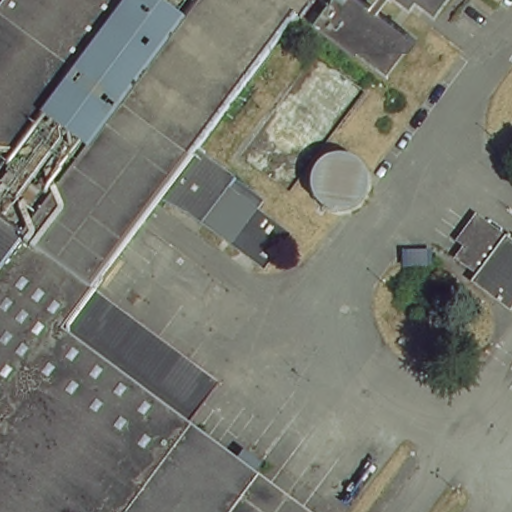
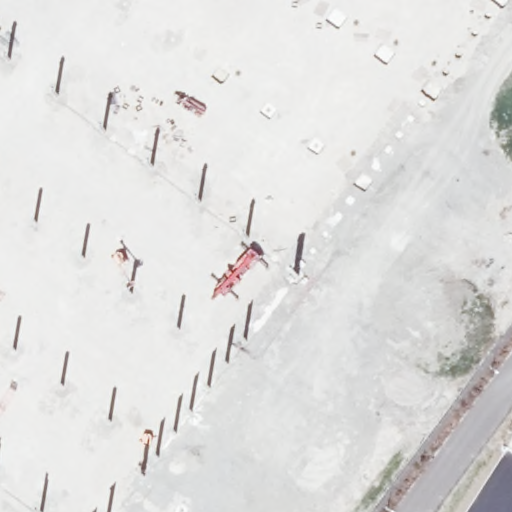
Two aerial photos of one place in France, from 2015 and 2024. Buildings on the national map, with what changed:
demolished [(202,433),(307,512),(0,512),(0,22),(16,0),(326,0),(209,160),(245,186),(240,194),(306,243),(280,280),(177,205),(106,301),(77,340),(202,433)]
demolished [(426,49),(398,88),(318,30),(325,20),(330,24),(347,0),(359,0),(380,15),(387,20),(426,49)]
demolished [(416,0),(445,0),(435,14),(416,0)]
demolished [(463,261),(471,250),(463,245),(477,225),(508,248),(486,278),(463,261)]
demolished [(512,259),(512,298),(493,284),(512,259)]

